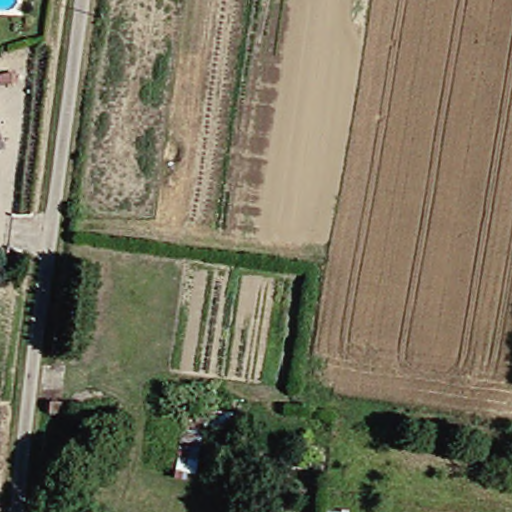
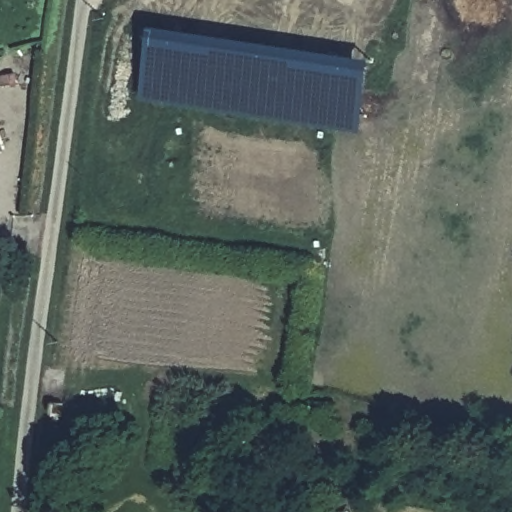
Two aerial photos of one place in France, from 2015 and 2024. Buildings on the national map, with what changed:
new [(362,130),(142,97),(152,25),(372,60),(362,130)]
new [(7,150),(0,152),(0,131),(7,150)]
demolished [(90,405),(84,445),(69,445),(71,405),(90,405)]
unchanged [(204,409),(196,458),(182,456),(181,440),(162,437),(165,407),(204,409)]

